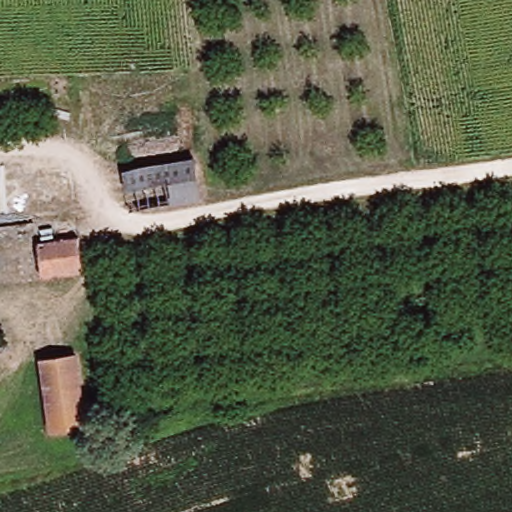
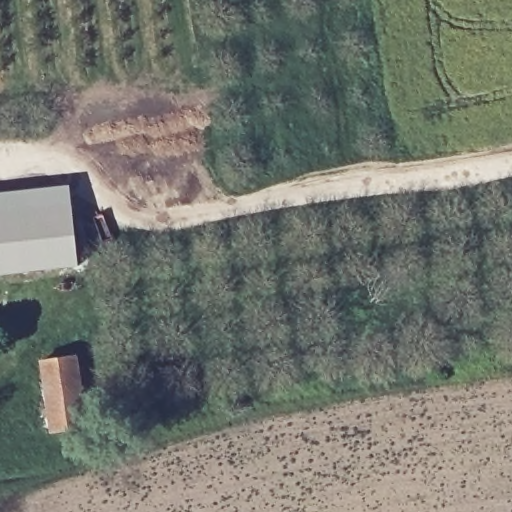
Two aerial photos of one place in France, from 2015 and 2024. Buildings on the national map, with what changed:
demolished [(184,161),(191,200),(122,210),(115,170),(184,161)]
new [(0,276),(0,193),(70,186),(78,268),(0,276)]
unchanged [(52,434),(39,366),(72,361),(84,429),(52,434)]

